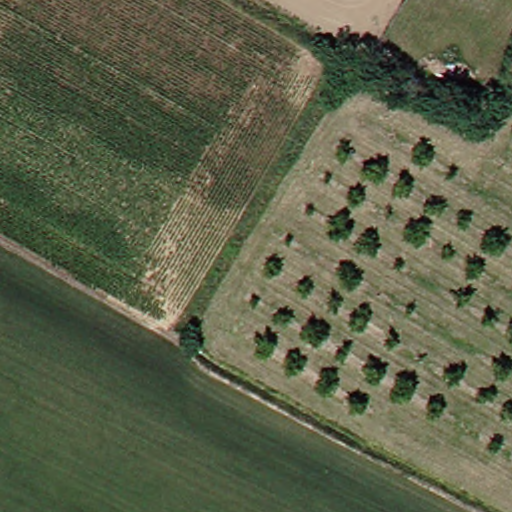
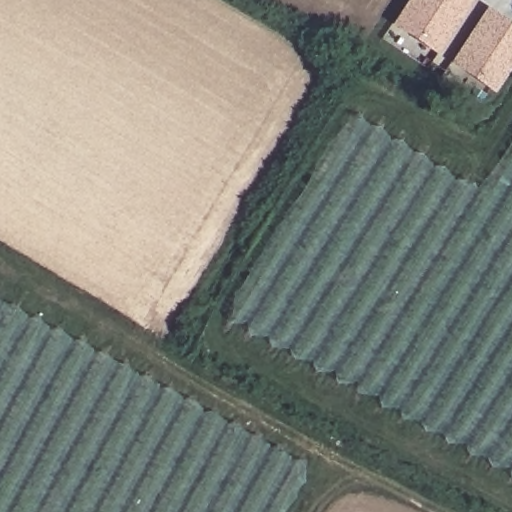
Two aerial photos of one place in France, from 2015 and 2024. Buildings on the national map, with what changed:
new [(386,27),(404,0),(468,0),(431,57),(386,27)]
new [(442,67),(481,8),(512,28),(512,59),(488,96),(442,67)]

